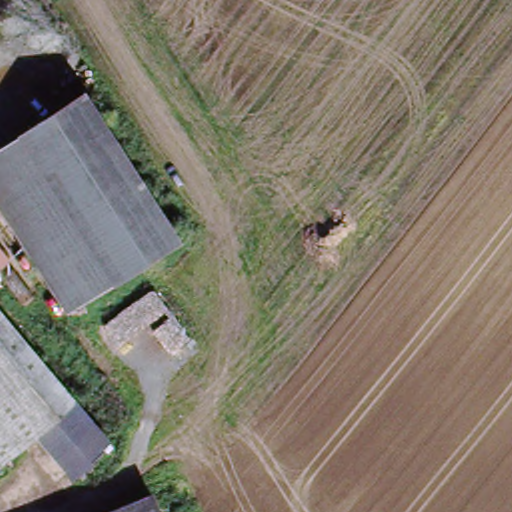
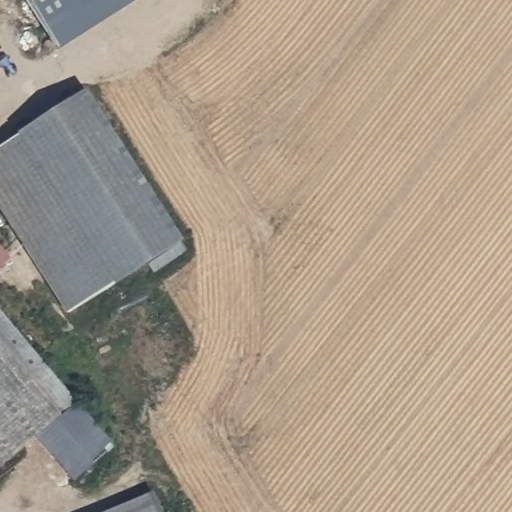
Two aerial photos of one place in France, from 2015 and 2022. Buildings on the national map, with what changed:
new [(58,51),(25,0),(139,0),(58,51)]
unchanged [(181,246),(120,282),(66,314),(18,234),(0,203),(0,150),(91,96),(181,246)]
unchanged [(4,267),(0,271),(0,257),(6,265),(4,267)]
unchanged [(43,429),(0,377),(0,317),(72,404),(43,429)]
unchanged [(34,435),(0,464),(0,377),(43,429),(34,435)]
unchanged [(107,447),(69,478),(34,435),(43,429),(72,404),(107,447)]
unchanged [(162,512),(148,512),(160,507),(162,512)]

